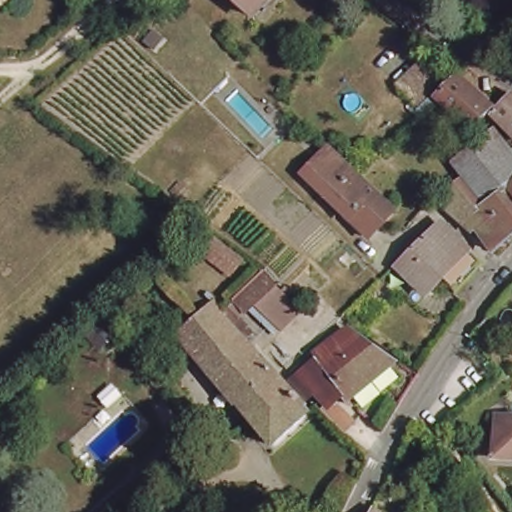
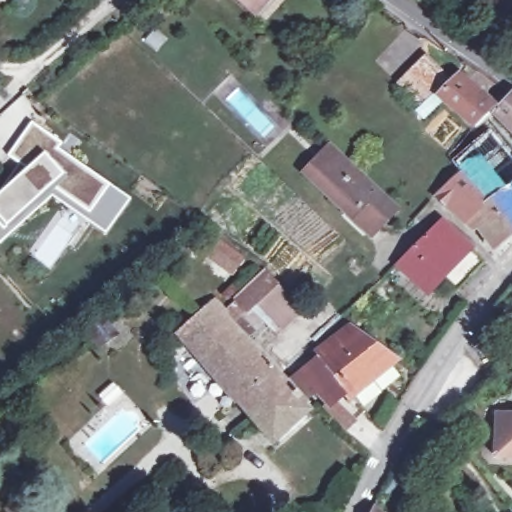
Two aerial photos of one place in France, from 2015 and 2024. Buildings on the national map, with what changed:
unchanged [(250,11),(237,0),(260,0),(250,11)]
unchanged [(420,56),(440,77),(412,106),(391,84),(420,56)]
unchanged [(452,76),(488,107),(469,128),(433,97),(452,76)]
unchanged [(487,114),(503,97),(506,94),(506,93),(512,96),(512,136),(487,114)]
new [(0,244),(0,243),(0,188),(20,165),(10,156),(32,123),(60,144),(57,149),(130,201),(106,236),(53,197),(0,244)]
unchanged [(489,250),(465,217),(458,223),(435,201),(451,185),(459,176),(448,163),(476,140),(480,136),(484,133),(493,146),(512,167),(512,230),(489,250)]
unchanged [(370,223),(362,214),(351,204),(341,214),(335,208),(332,205),(310,183),(301,175),(314,161),(323,169),(328,165),(342,178),(350,172),(356,179),(376,199),(385,207),(370,223)]
unchanged [(445,296),(430,282),(415,298),(386,270),(415,242),(430,228),(471,268),(445,296)]
new [(214,237),(243,259),(231,273),(203,251),(214,237)]
unchanged [(267,258),(311,312),(267,339),(227,287),(267,258)]
unchanged [(216,311),(305,407),(268,439),(173,328),(210,297),(216,303),(220,308),(216,311)]
unchanged [(338,425),(316,402),(320,398),(308,385),(301,391),(286,374),(293,368),(325,344),(320,337),(332,328),(337,335),(349,326),(390,356),(343,395),(335,386),(325,393),(347,416),(338,425)]
unchanged [(503,465),(503,423),(512,423),(512,465),(503,465)]
unchanged [(384,512),(368,512),(373,502),(384,512)]

